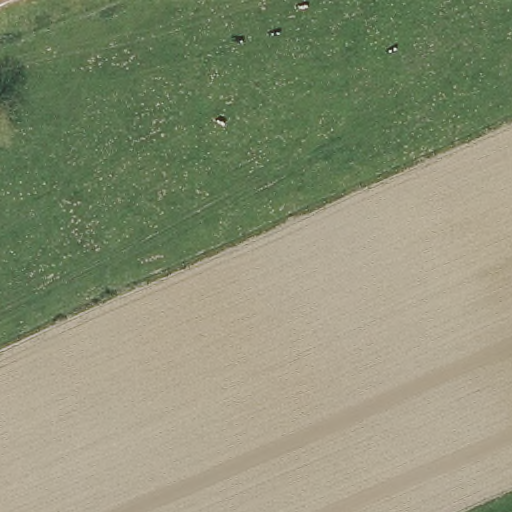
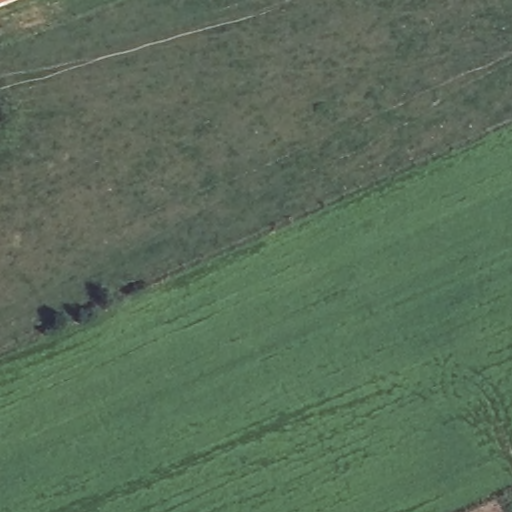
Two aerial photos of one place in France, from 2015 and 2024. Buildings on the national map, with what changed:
unchanged [(0,14),(0,0),(35,0),(0,14)]

